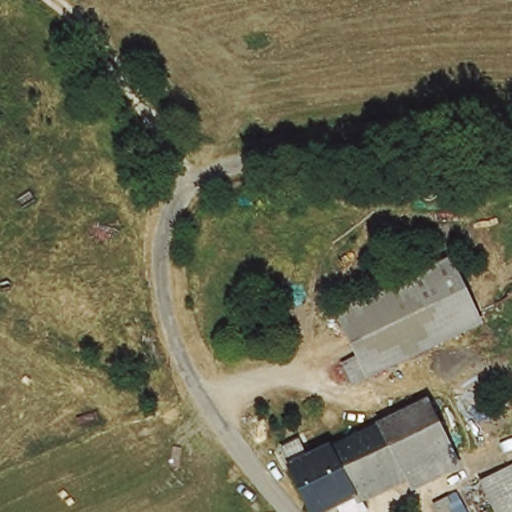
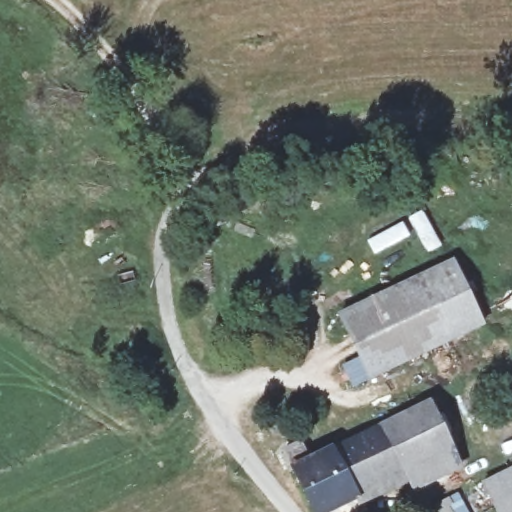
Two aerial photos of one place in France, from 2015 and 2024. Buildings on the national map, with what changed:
unchanged [(474,322),(365,379),(354,362),(368,354),(346,312),(441,259),(474,322)]
unchanged [(284,452),(304,442),(315,460),(430,401),(454,450),(333,512),(314,512),(284,452)]
unchanged [(505,467),(512,479),(512,512),(496,512),(491,503),(479,479),(505,467)]
unchanged [(454,498),(467,493),(476,512),(461,512),(454,498)]

